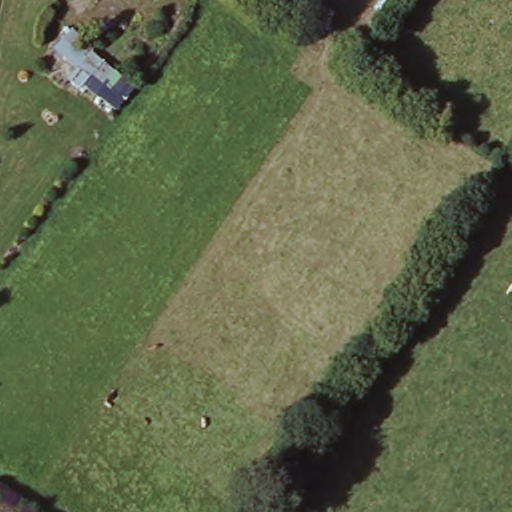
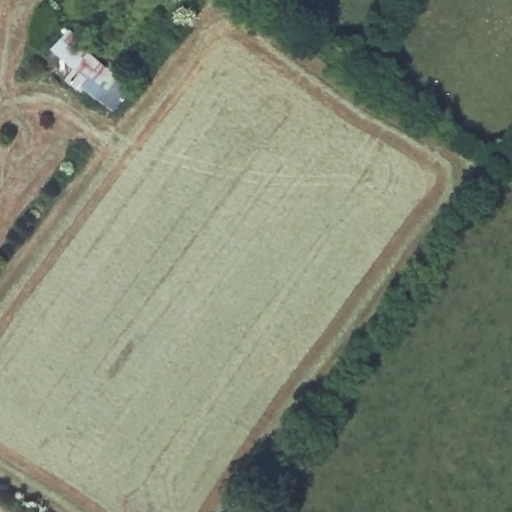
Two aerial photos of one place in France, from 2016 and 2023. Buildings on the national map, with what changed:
unchanged [(113,63),(92,94),(48,56),(70,27),(113,63)]

